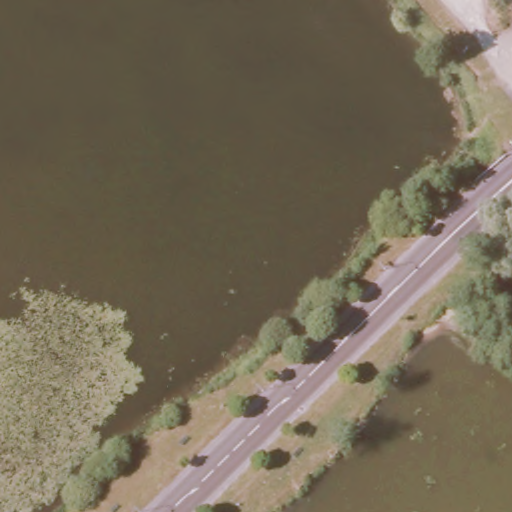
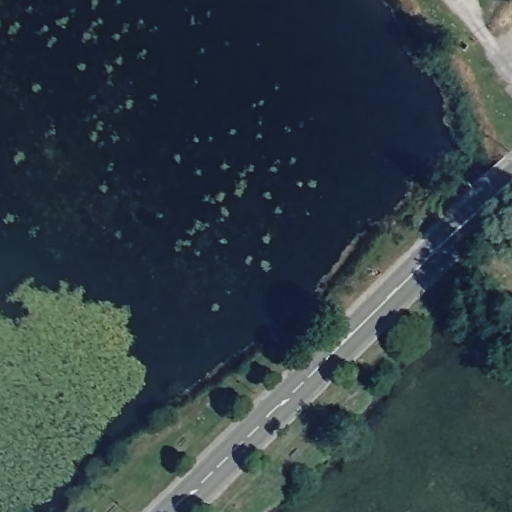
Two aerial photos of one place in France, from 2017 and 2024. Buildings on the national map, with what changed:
[]

